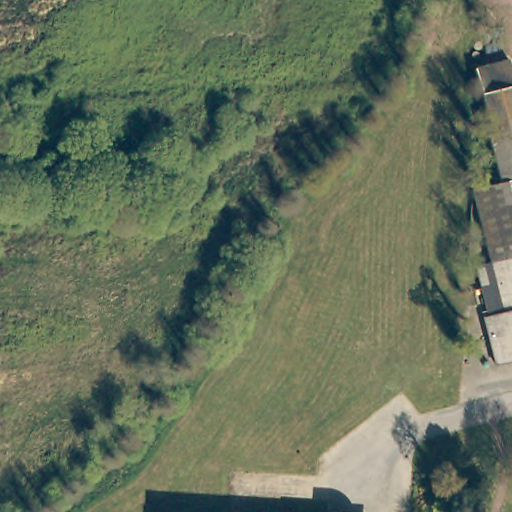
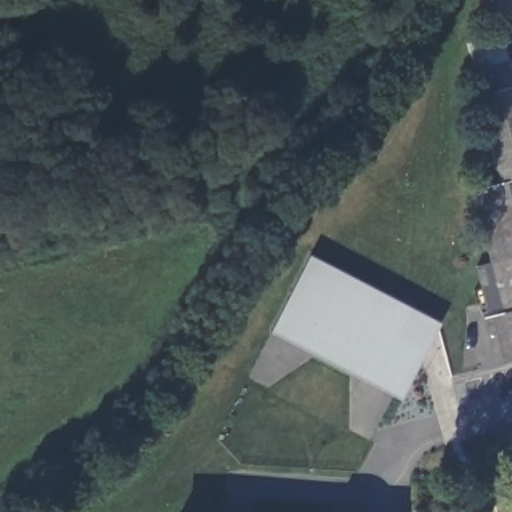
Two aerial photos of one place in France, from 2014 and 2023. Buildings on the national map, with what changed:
unchanged [(507,60),(512,78),(512,114),(486,121),(476,86),(472,70),(478,68),(507,60)]
unchanged [(486,121),(512,114),(512,179),(499,182),(498,183),(482,125),(483,124),(487,123),(486,121)]
unchanged [(470,189),(498,183),(499,182),(512,179),(512,257),(488,263),(470,189)]
new [(400,400),(270,332),(309,254),(440,323),(400,400)]
unchanged [(474,266),(488,263),(512,257),(512,362),(497,365),(474,266)]

